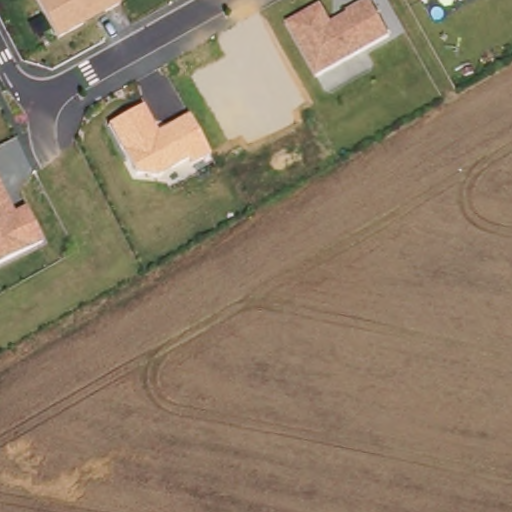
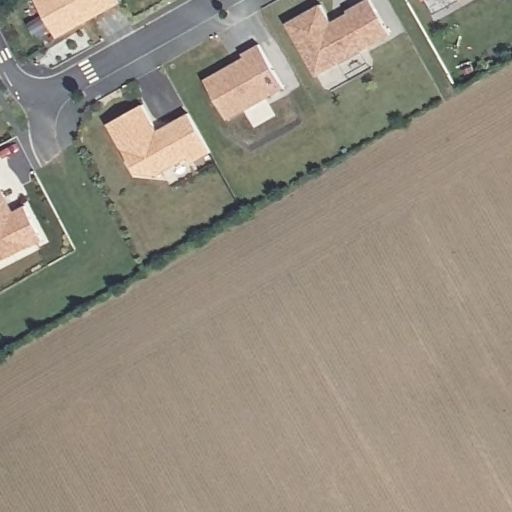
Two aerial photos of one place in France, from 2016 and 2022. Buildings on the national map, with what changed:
unchanged [(36,0),(117,0),(119,3),(56,38),(36,0)]
unchanged [(331,23),(369,0),(372,0),(391,34),(318,75),(288,24),(321,6),(331,23)]
unchanged [(421,0),(424,0),(422,1),(421,0)]
unchanged [(458,0),(461,0),(459,1),(458,0)]
new [(243,64),(241,60),(258,51),(282,94),(226,126),(203,86),(227,72),(243,64)]
unchanged [(188,112),(210,152),(192,162),(190,158),(159,175),(136,173),(108,123),(142,104),(157,129),(188,112)]
unchanged [(26,207),(44,244),(0,267),(0,185),(14,212),(26,207)]

